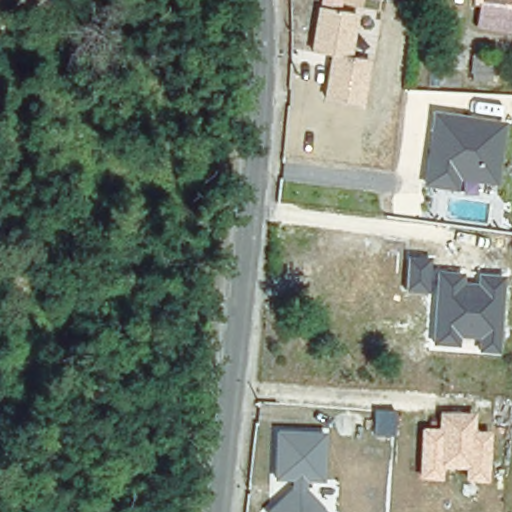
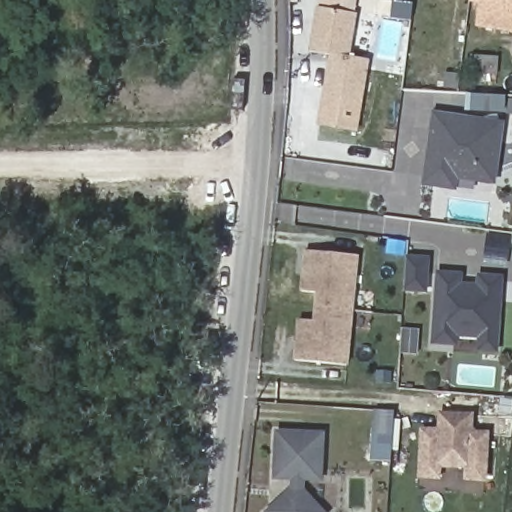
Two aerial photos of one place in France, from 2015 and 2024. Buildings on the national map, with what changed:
unchanged [(474,5),(475,0),(512,0),(512,9),(479,6),(474,5)]
unchanged [(479,6),(512,9),(512,33),(477,31),(479,6)]
unchanged [(364,105),(323,101),(328,56),(309,54),(316,7),(358,14),(353,55),(372,61),(364,105)]
unchanged [(491,62),(491,79),(466,78),(467,61),(491,62)]
unchanged [(496,183),(476,181),(474,195),(460,194),(462,178),(459,178),(459,190),(421,185),(433,112),(505,122),(496,183)]
new [(360,256),(350,364),(295,361),(298,319),(313,321),(315,292),(299,290),(304,250),(360,256)]
new [(407,255),(429,257),(427,290),(405,289),(407,255)]
unchanged [(499,352),(476,350),(476,337),(459,336),(459,347),(432,346),(436,270),(464,272),(464,281),(475,281),(475,273),(504,276),(499,352)]
new [(375,410),(395,411),(394,436),(373,435),(375,410)]
unchanged [(474,430),(491,431),(487,481),(464,478),(463,468),(444,468),(443,480),(419,478),(420,426),(437,426),(438,413),(475,415),(474,430)]
unchanged [(309,482),(309,490),(327,512),(266,512),(292,492),(293,481),(274,482),(275,428),(327,432),(326,482),(309,482)]

